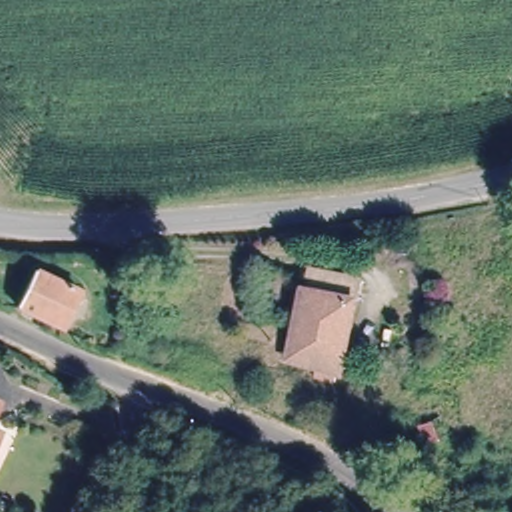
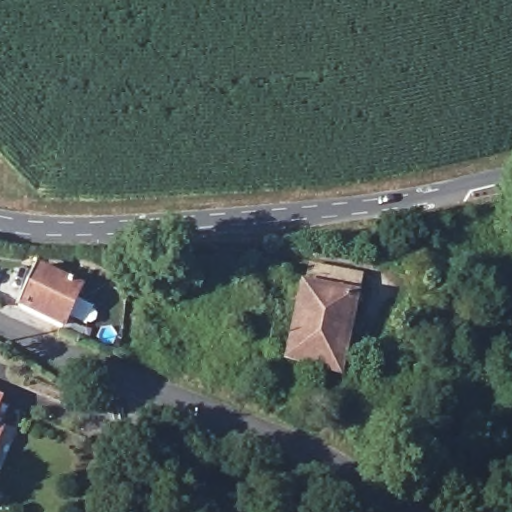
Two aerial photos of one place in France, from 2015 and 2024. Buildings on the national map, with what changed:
unchanged [(36,272),(82,292),(67,328),(21,307),(36,272)]
unchanged [(311,374),(313,367),(289,361),(303,293),(307,274),(356,282),(340,369),(338,380),(311,374)]

